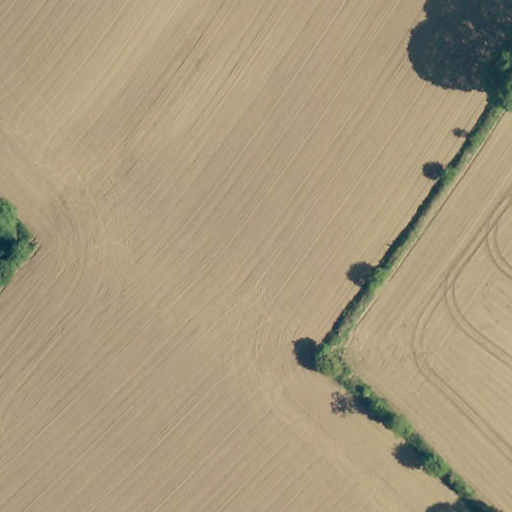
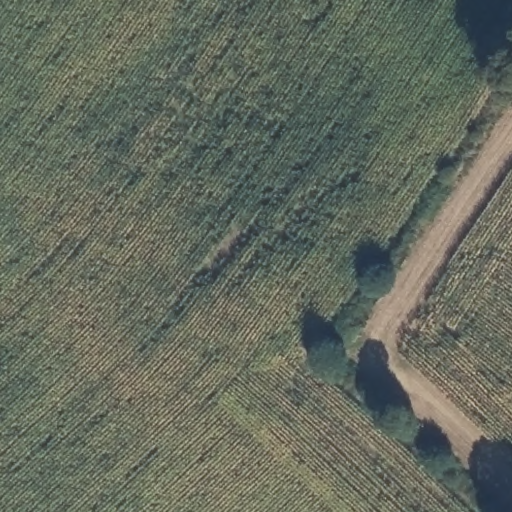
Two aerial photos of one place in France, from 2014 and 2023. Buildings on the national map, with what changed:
[]

